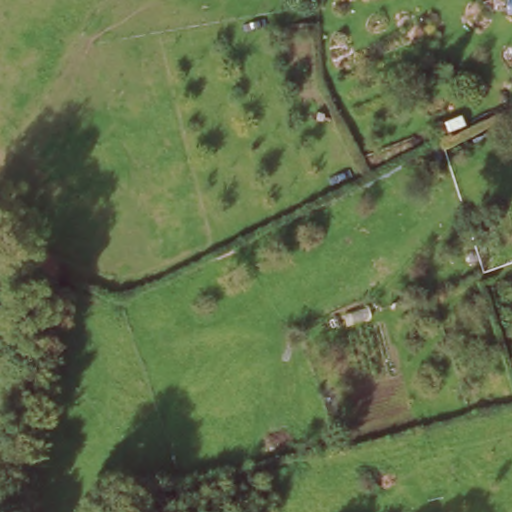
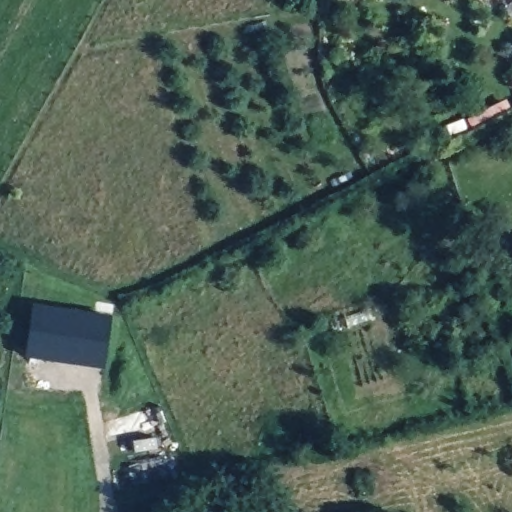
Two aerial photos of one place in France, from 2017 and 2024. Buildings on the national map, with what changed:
new [(105,368),(23,356),(32,302),(112,315),(105,368)]

